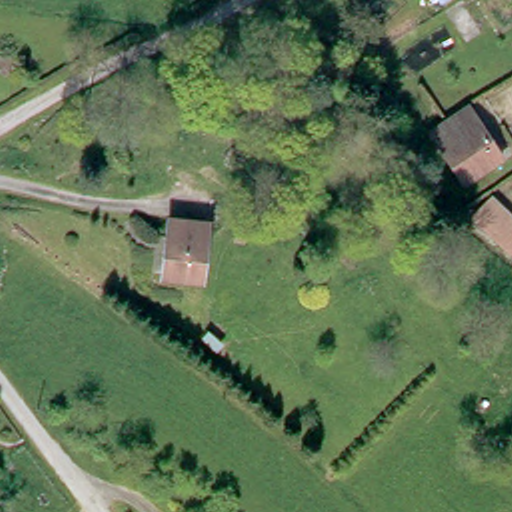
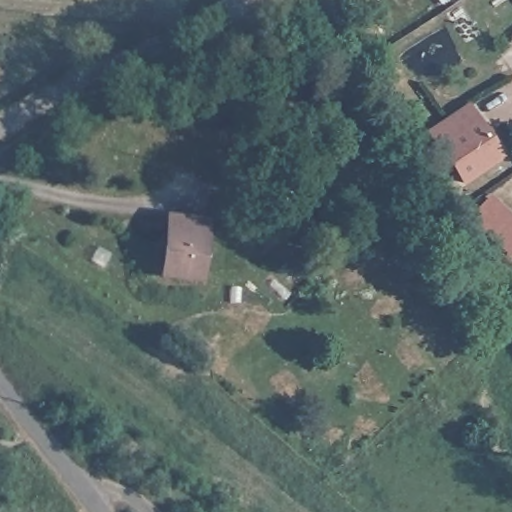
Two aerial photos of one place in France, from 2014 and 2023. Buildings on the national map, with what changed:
unchanged [(459,184),(425,121),(467,97),(505,158),(459,184)]
unchanged [(512,249),(511,250),(470,221),(485,202),(512,219),(512,249)]
unchanged [(196,282),(162,278),(163,258),(164,247),(172,247),(173,234),(168,234),(170,217),(210,219),(203,283),(196,282)]

